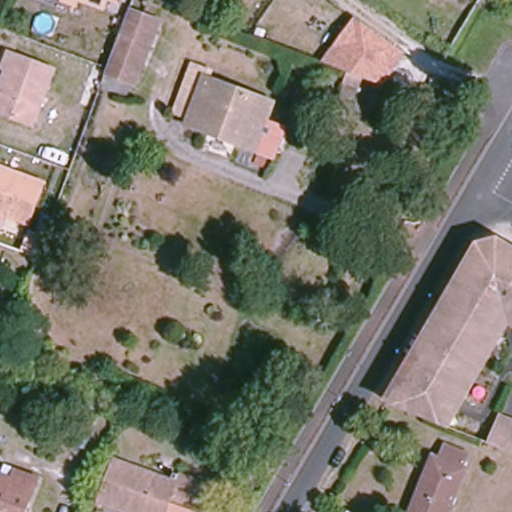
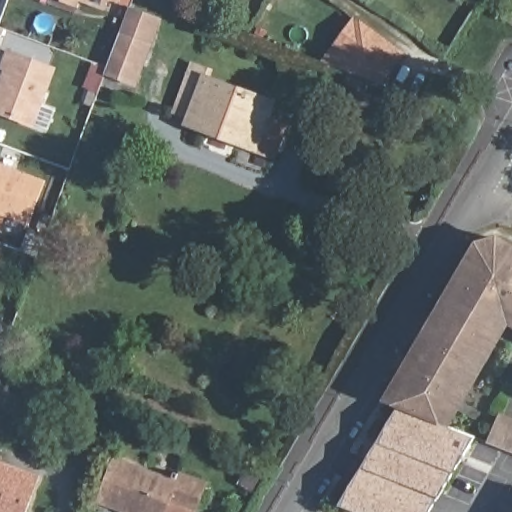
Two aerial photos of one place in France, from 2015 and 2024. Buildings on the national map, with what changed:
unchanged [(61,0),(77,0),(75,6),(61,0)]
unchanged [(104,7),(83,0),(107,0),(104,7)]
unchanged [(150,48),(135,86),(107,75),(121,37),(122,37),(131,11),(160,22),(150,48)]
unchanged [(385,87),(321,62),(355,16),(409,55),(385,87)]
unchanged [(0,113),(0,87),(6,70),(3,68),(9,52),(55,71),(34,126),(0,113)]
demolished [(93,109),(93,110),(78,105),(88,75),(91,76),(95,67),(105,71),(101,80),(104,80),(104,81),(93,109)]
unchanged [(201,155),(210,135),(188,127),(191,118),(177,112),(193,69),(208,74),(205,81),(273,106),(256,152),(233,144),(225,165),(201,155)]
demolished [(359,90),(343,85),(347,72),(364,77),(359,90)]
unchanged [(4,215),(0,225),(0,167),(43,182),(28,224),(4,215)]
unchanged [(479,246),(498,241),(512,249),(512,328),(508,326),(450,425),(388,400),(479,246)]
unchanged [(0,265),(0,256),(3,257),(0,265)]
unchanged [(11,323),(0,319),(5,306),(17,310),(11,323)]
unchanged [(0,375),(0,347),(7,350),(0,375)]
new [(429,512),(355,512),(340,506),(401,405),(450,425),(476,436),(429,512)]
unchanged [(489,443),(501,415),(512,419),(512,453),(489,443)]
unchanged [(85,451),(70,445),(79,418),(94,423),(85,451)]
demolished [(446,446),(468,455),(463,467),(466,468),(449,512),(410,512),(433,456),(440,458),(446,446)]
unchanged [(115,460),(176,482),(179,474),(206,485),(195,512),(192,512),(169,503),(166,512),(126,512),(100,502),(115,460)]
unchanged [(0,512),(0,475),(12,479),(16,470),(40,478),(27,512),(0,512)]

